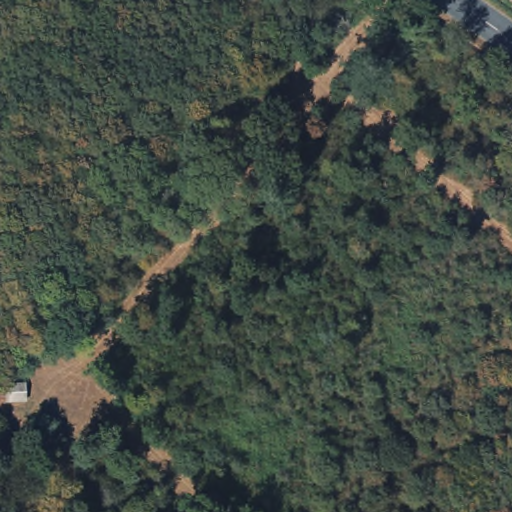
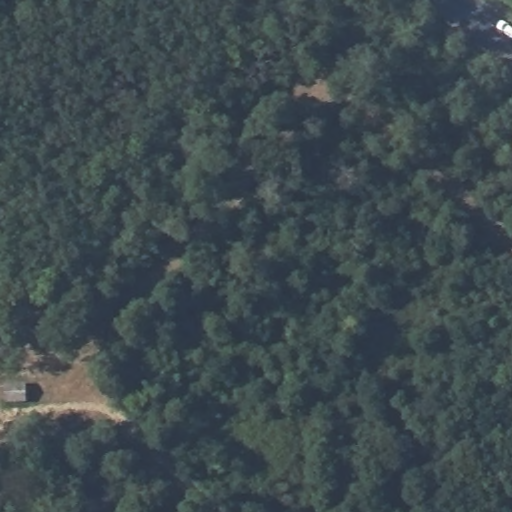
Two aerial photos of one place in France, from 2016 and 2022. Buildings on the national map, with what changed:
unchanged [(24,384),(26,401),(5,404),(5,394),(6,387),(24,384)]

